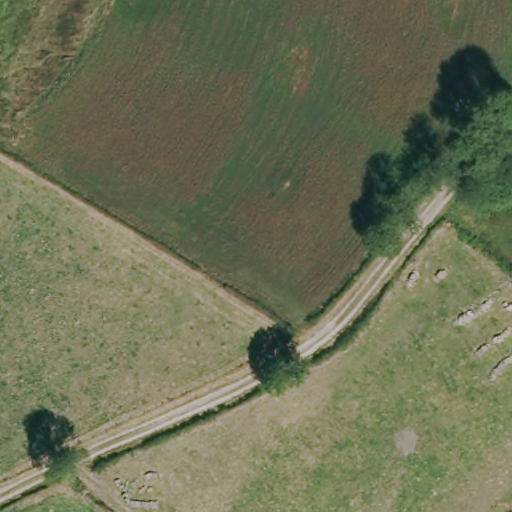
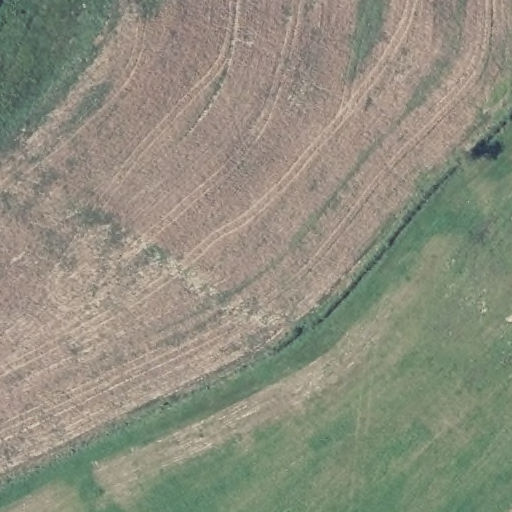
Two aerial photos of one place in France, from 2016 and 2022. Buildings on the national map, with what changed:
[]

